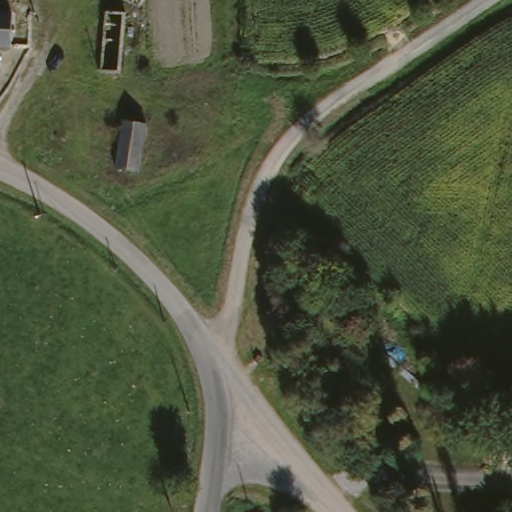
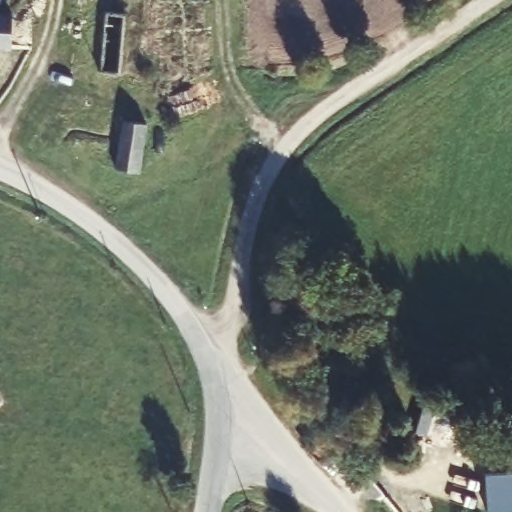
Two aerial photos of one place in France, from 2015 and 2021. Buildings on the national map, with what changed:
unchanged [(16,13),(14,47),(0,47),(0,12),(16,13)]
unchanged [(125,174),(129,125),(153,127),(149,175),(125,174)]
new [(512,472),(512,512),(487,512),(484,474),(512,472)]

